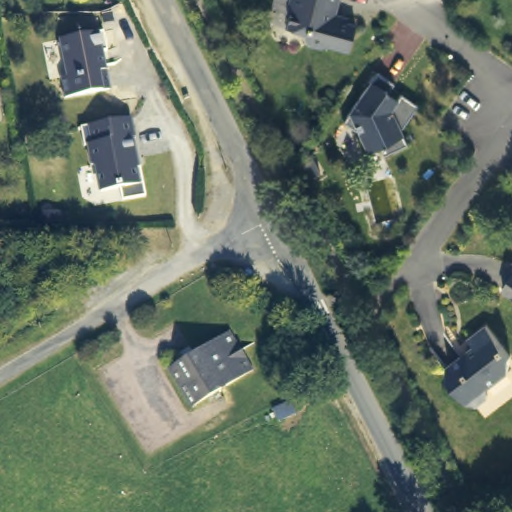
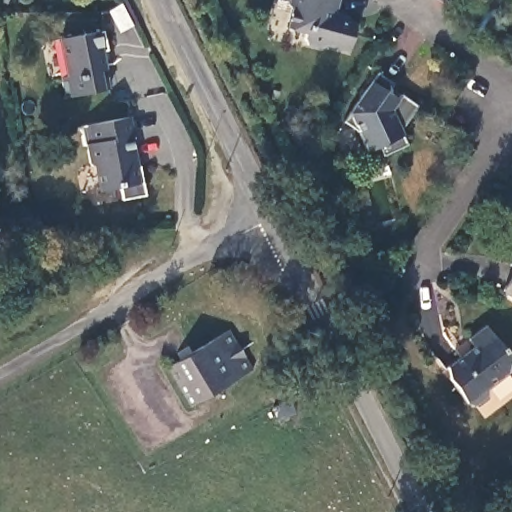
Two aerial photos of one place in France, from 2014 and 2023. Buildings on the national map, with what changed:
unchanged [(344,19),(359,23),(352,50),(330,44),(326,46),(310,43),(307,37),(308,32),(290,27),(270,22),(276,0),(342,0),(340,11),(344,19)]
unchanged [(103,31),(114,90),(71,98),(58,39),(103,31)]
unchanged [(378,68),(395,79),(385,93),(394,99),(402,89),(420,102),(403,126),(409,140),(384,150),(380,141),(368,146),(360,127),(344,116),(378,68)]
unchanged [(128,118),(145,197),(121,202),(118,189),(96,194),(89,148),(84,149),(80,127),(128,118)]
unchanged [(512,271),(512,297),(500,289),(512,271)]
unchanged [(512,360),(512,361),(504,367),(510,375),(487,389),(486,399),(473,408),(464,404),(448,379),(448,367),(478,348),(472,339),(491,327),(512,360)]
unchanged [(232,329),(254,371),(188,407),(166,366),(232,329)]

